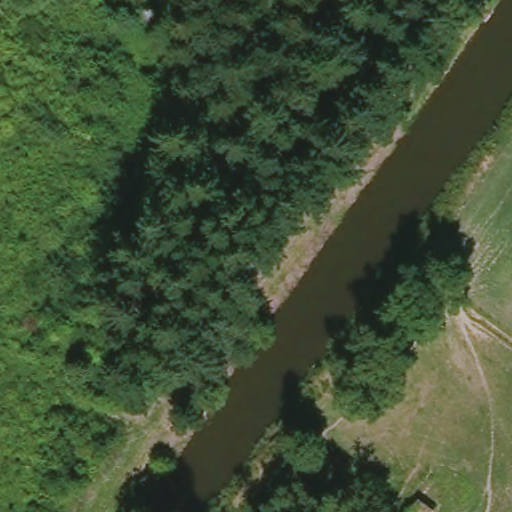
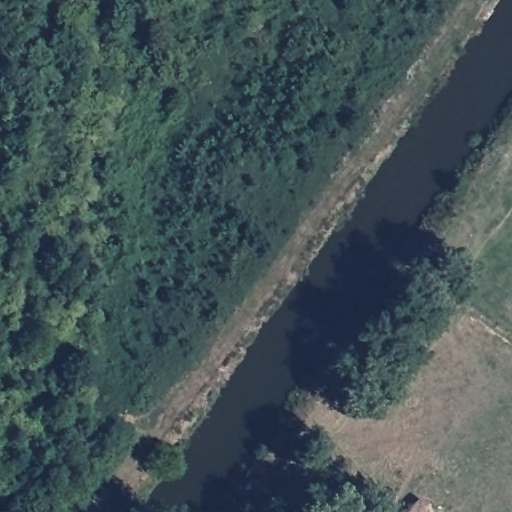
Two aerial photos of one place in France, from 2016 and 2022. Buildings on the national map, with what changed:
unchanged [(438,512),(414,512),(422,501),(438,512)]

